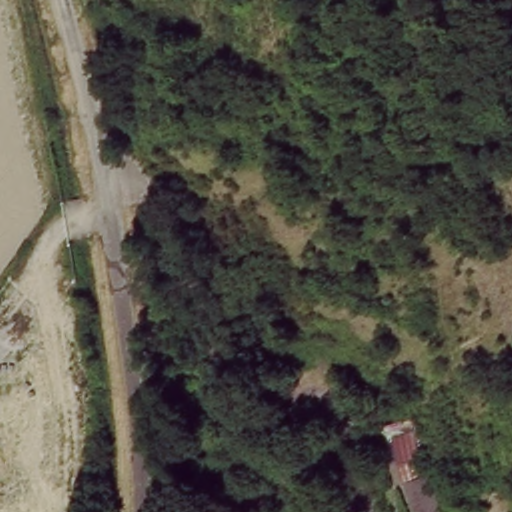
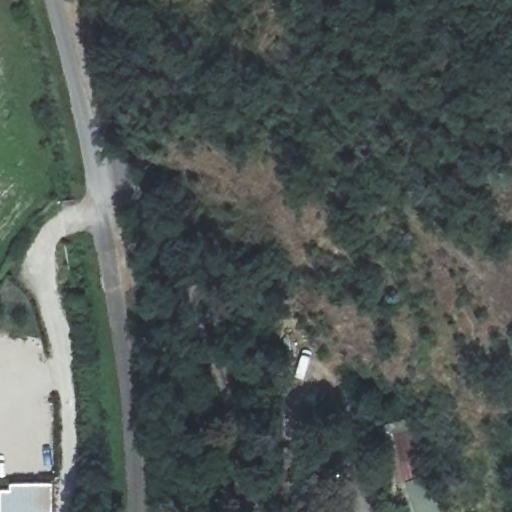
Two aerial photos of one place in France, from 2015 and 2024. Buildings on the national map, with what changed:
unchanged [(410,447),(413,464),(420,463),(431,512),(408,512),(395,463),(390,424),(417,421),(420,445),(410,447)]
new [(8,482),(53,481),(53,512),(0,512),(0,488),(8,487),(8,482)]

